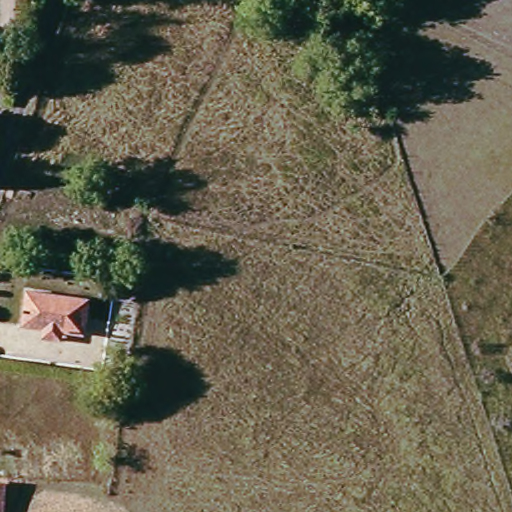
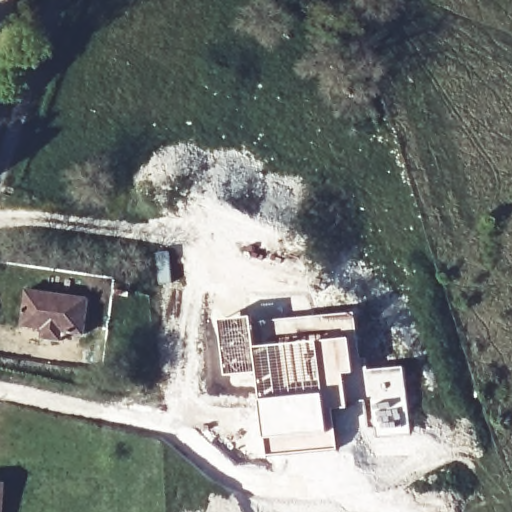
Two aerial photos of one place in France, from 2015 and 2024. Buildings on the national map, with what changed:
unchanged [(59,243),(64,221),(101,230),(95,252),(59,243)]
unchanged [(31,324),(36,287),(96,296),(90,333),(70,330),(68,341),(44,338),(46,327),(31,324)]
new [(357,312),(358,336),(354,338),(356,374),(346,375),(348,408),(327,410),(337,447),(264,455),(263,447),(262,438),(256,373),(255,318),(357,312)]
new [(254,315),(255,318),(256,373),(225,376),(221,318),(254,315)]
new [(404,365),(409,433),(372,436),(364,369),(404,365)]
unchanged [(7,512),(0,512),(0,484),(8,485),(7,512)]

